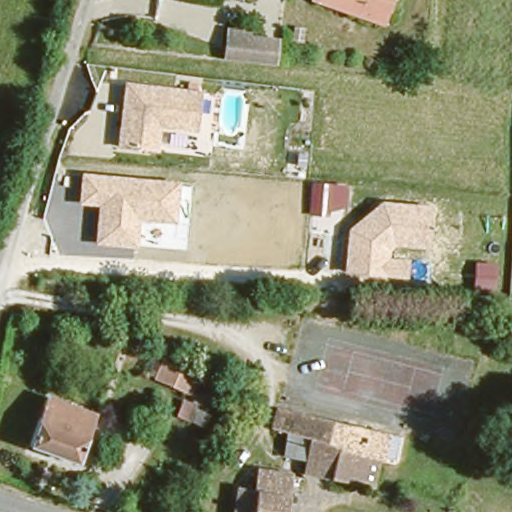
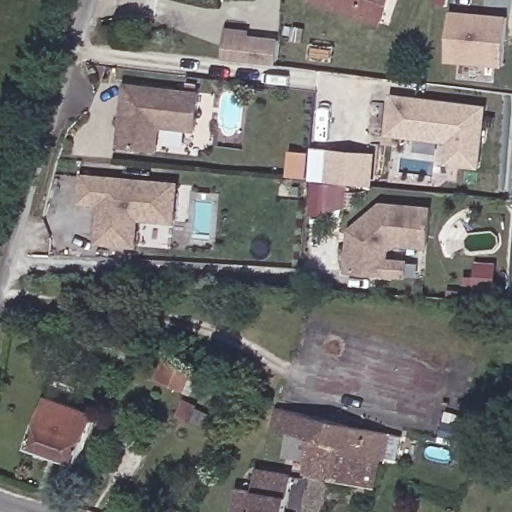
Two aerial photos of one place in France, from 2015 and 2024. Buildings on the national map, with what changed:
unchanged [(346,0),(390,0),(385,14),(346,0)]
new [(502,65),(446,61),(451,14),(507,18),(502,65)]
unchanged [(275,64),(223,57),(226,26),(247,29),(247,35),(278,39),(275,64)]
unchanged [(197,132),(160,128),(158,152),(117,148),(124,82),(201,91),(197,132)]
new [(389,101),(402,103),(402,95),(484,105),(477,164),(445,161),(447,139),(386,132),(389,101)]
new [(330,148),(370,153),(367,184),(326,180),(330,148)]
unchanged [(176,224),(139,221),(138,248),(96,245),(98,206),(78,205),(81,173),(180,182),(176,224)]
new [(325,184),(343,185),(341,207),(324,205),(323,210),(309,209),(312,183),(325,184)]
unchanged [(430,248),(396,247),(390,251),(389,259),(409,259),(407,278),(344,273),(348,228),(383,201),(432,205),(430,248)]
unchanged [(53,391),(99,407),(82,458),(61,451),(50,447),(36,442),(53,391)]
unchanged [(267,427),(273,403),(324,415),(320,440),(346,445),(340,476),(314,470),(299,466),(305,436),(267,427)]
unchanged [(346,445),(320,440),(324,415),(399,433),(395,441),(393,457),(378,453),(372,483),(357,480),(340,476),(346,445)]
unchanged [(238,486),(253,488),(255,478),(260,457),(291,464),(284,491),(281,502),(279,512),(232,512),(238,486)]

